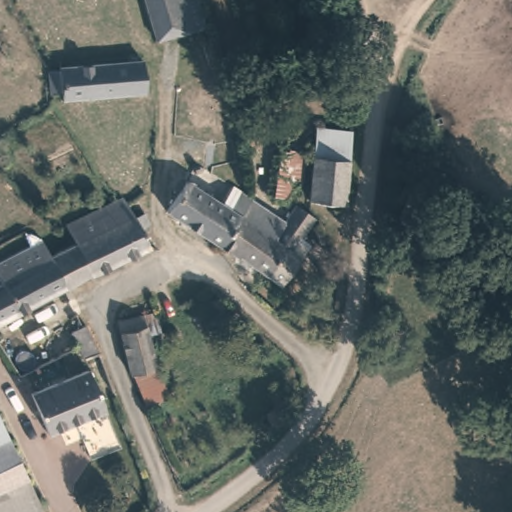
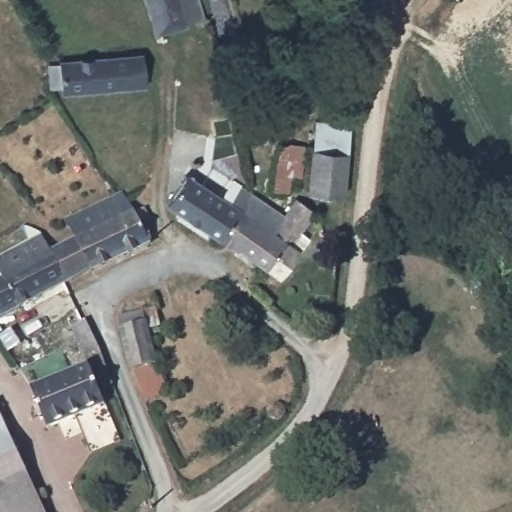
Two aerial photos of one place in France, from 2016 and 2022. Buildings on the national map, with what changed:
unchanged [(151,40),(142,0),(192,0),(199,26),(151,40)]
unchanged [(69,62),(69,50),(79,50),(79,60),(151,53),(155,85),(72,94),(71,86),(60,87),(59,62),(69,62)]
unchanged [(312,199),(315,155),(317,126),(351,129),(348,155),(343,201),(312,199)]
unchanged [(278,158),(278,150),(291,151),(306,152),(305,160),(304,180),(289,179),(288,196),(275,195),(278,158)]
unchanged [(179,212),(180,205),(174,202),(178,172),(251,215),(231,246),(179,212)]
unchanged [(76,237),(67,219),(125,192),(135,210),(136,219),(145,234),(147,241),(91,272),(90,268),(65,282),(47,250),(76,237)]
unchanged [(293,219),(283,232),(268,225),(246,255),(231,246),(251,215),(261,197),(293,219)]
unchanged [(325,216),(300,251),(309,257),(288,283),(246,255),(268,225),(283,232),(293,219),(306,203),(325,216)]
unchanged [(2,274),(0,270),(0,254),(39,234),(47,250),(65,282),(0,318),(0,275),(2,274)]
unchanged [(147,405),(136,373),(132,375),(115,325),(142,315),(138,305),(154,302),(160,332),(145,336),(155,367),(166,399),(147,405)]
unchanged [(81,341),(75,329),(90,322),(96,335),(105,350),(90,358),(81,341)]
unchanged [(92,367),(109,405),(51,430),(35,391),(92,367)]
unchanged [(275,407),(281,400),(290,410),(283,415),(275,407)]
unchanged [(41,512),(0,512),(0,422),(41,512)]

